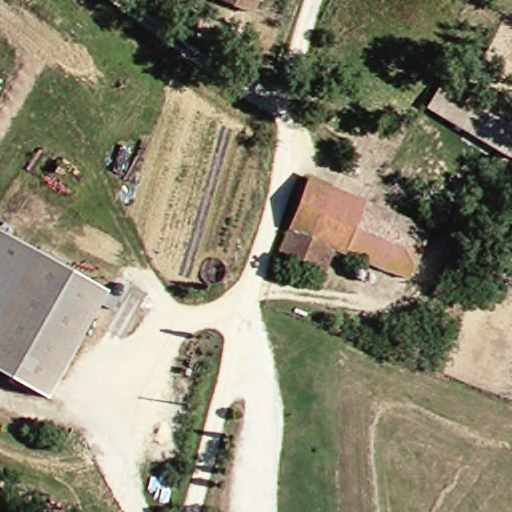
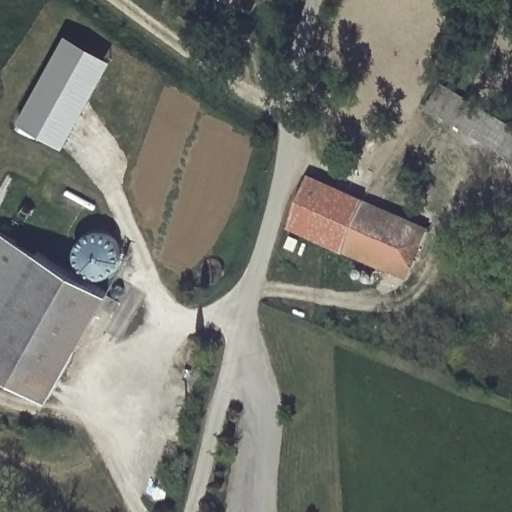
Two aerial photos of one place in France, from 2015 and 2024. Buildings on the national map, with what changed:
unchanged [(256,12),(227,0),(261,0),(256,12)]
new [(65,147),(20,122),(69,35),(114,60),(65,147)]
unchanged [(443,100),(451,86),(467,95),(471,89),(480,94),(477,100),(512,119),(512,139),(443,100)]
unchanged [(314,178),(339,188),(317,239),(293,229),(314,178)]
unchanged [(412,278),(341,249),(317,239),(339,188),(433,227),(427,241),(421,257),(412,278)]
unchanged [(0,229),(42,253),(112,295),(52,395),(0,365),(0,229)]
unchanged [(329,277),(280,258),(293,229),(317,239),(341,249),(329,277)]
new [(121,248),(122,255),(120,261),(117,267),(112,272),(106,275),(99,276),(92,275),(86,272),(81,267),(77,262),(76,255),(77,249),(79,242),(83,236),(89,232),(95,230),(102,230),(109,232),(119,241),(121,248)]

